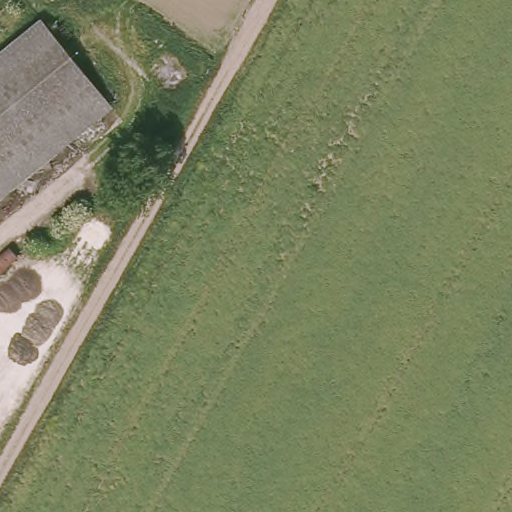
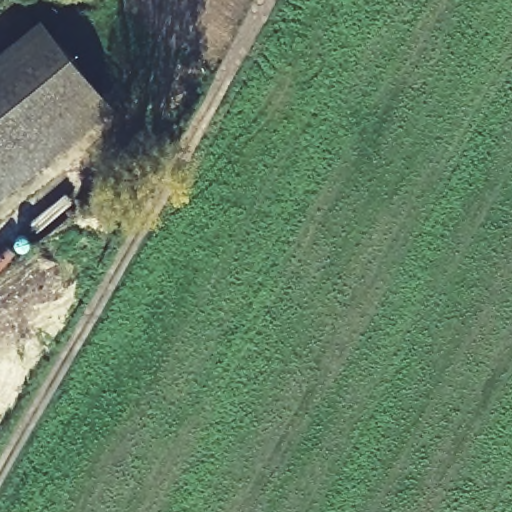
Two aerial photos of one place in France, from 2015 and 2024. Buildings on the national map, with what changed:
unchanged [(0,196),(0,53),(37,23),(111,110),(0,196)]

